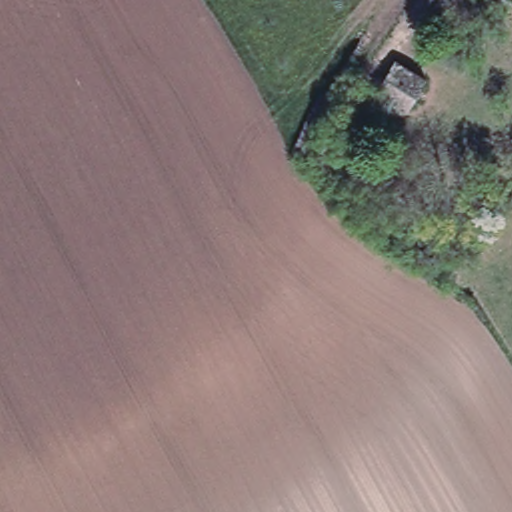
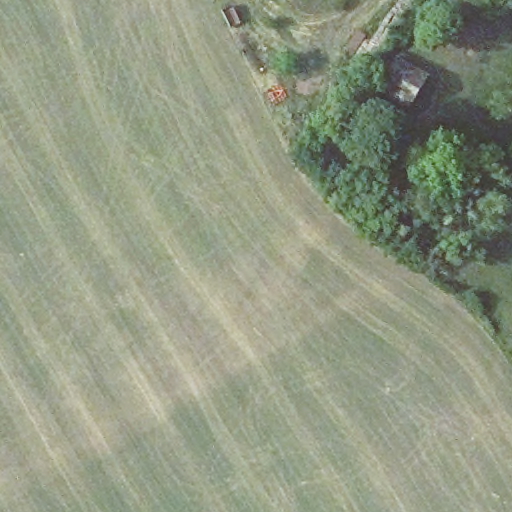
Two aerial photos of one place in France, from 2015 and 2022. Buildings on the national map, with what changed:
unchanged [(424,82),(407,109),(377,92),(395,64),(424,82)]

